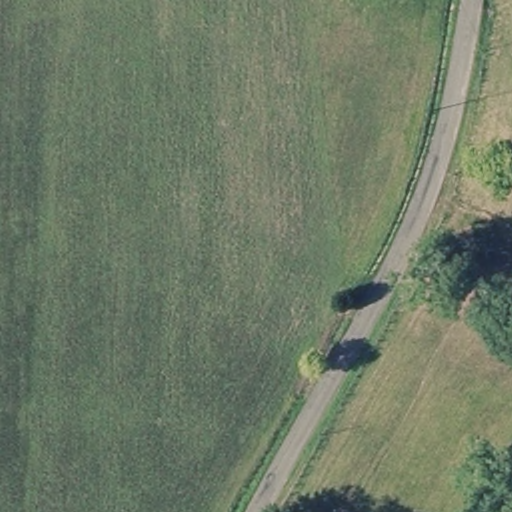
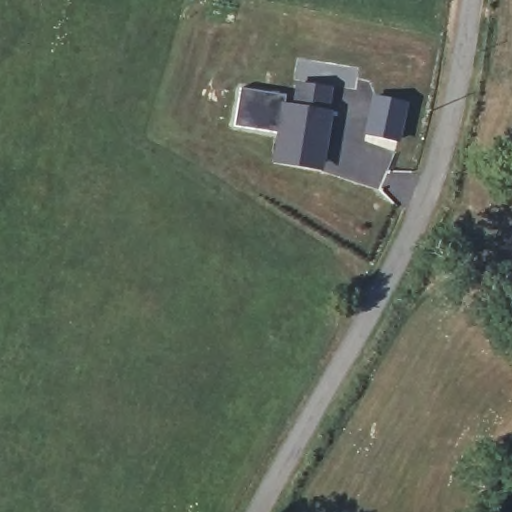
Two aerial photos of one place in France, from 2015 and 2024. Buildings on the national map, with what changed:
new [(284,96),(283,103),(291,105),(294,83),(330,89),(328,111),(332,111),(322,172),(271,163),(277,133),(233,126),(240,87),(284,96)]

